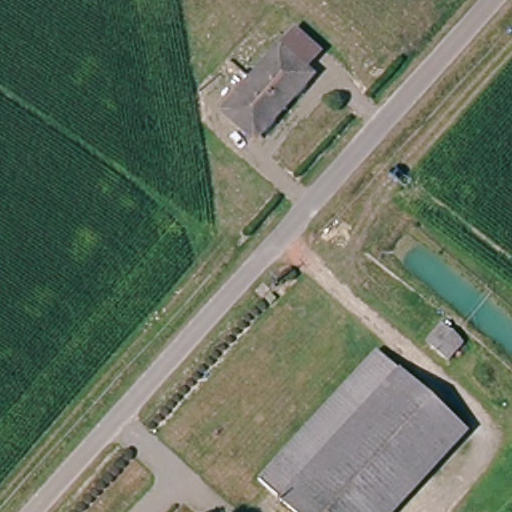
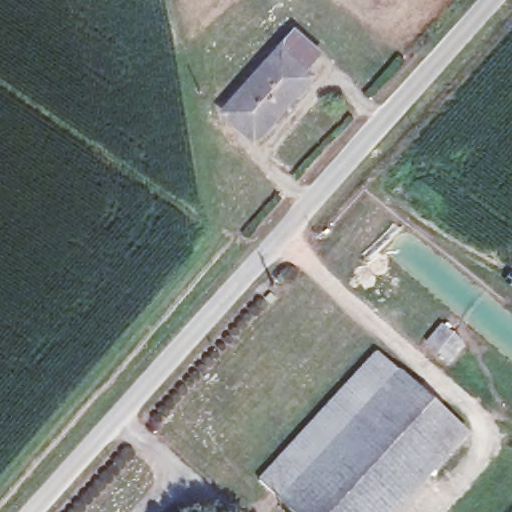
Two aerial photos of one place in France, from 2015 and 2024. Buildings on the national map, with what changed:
unchanged [(296,36),(316,56),(303,70),(314,79),(253,139),(223,110),(296,36)]
unchanged [(454,345),(441,361),(420,343),(435,327),(454,345)]
unchanged [(367,339),(388,358),(274,487),(254,469),(367,339)]
unchanged [(480,441),(417,512),(302,512),(274,487),(388,358),(480,441)]

